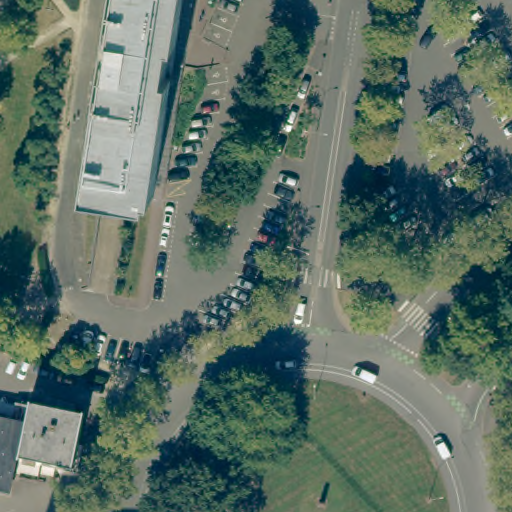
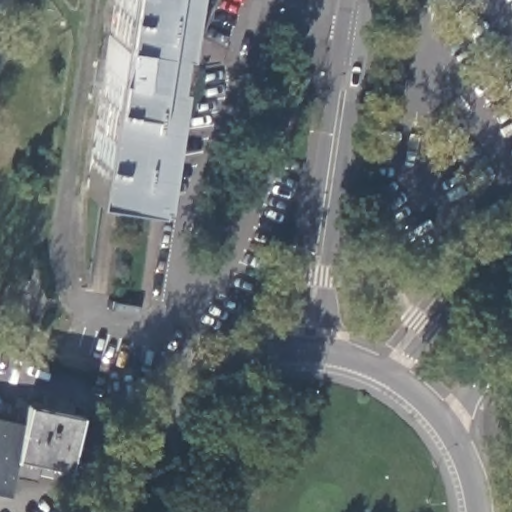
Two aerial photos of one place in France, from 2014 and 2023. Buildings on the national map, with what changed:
unchanged [(131,192),(87,186),(115,0),(183,0),(154,196),(147,195),(131,192)]
unchanged [(82,410),(71,466),(15,455),(9,487),(0,485),(0,396),(28,402),(29,400),(82,410)]

